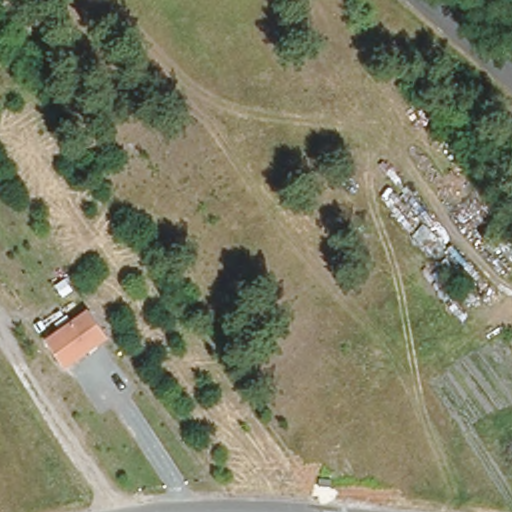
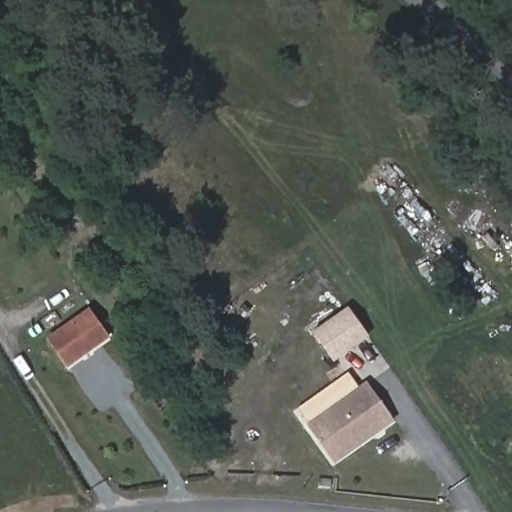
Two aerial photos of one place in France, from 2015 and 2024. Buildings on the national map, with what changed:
new [(348,307),(370,337),(334,362),(312,332),(348,307)]
unchanged [(73,370),(65,375),(46,347),(54,342),(89,318),(108,345),(73,370)]
new [(335,465),(307,424),(366,381),(396,422),(335,465)]

